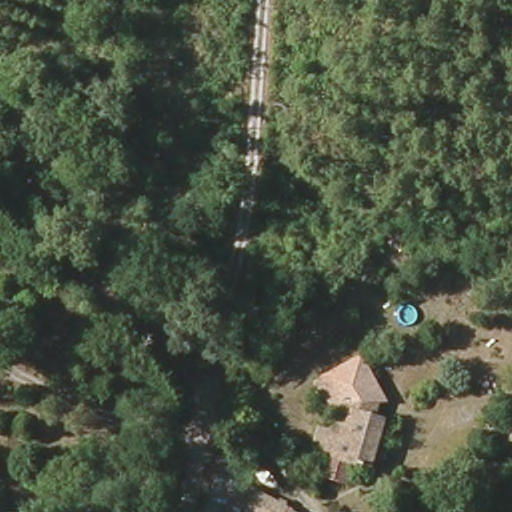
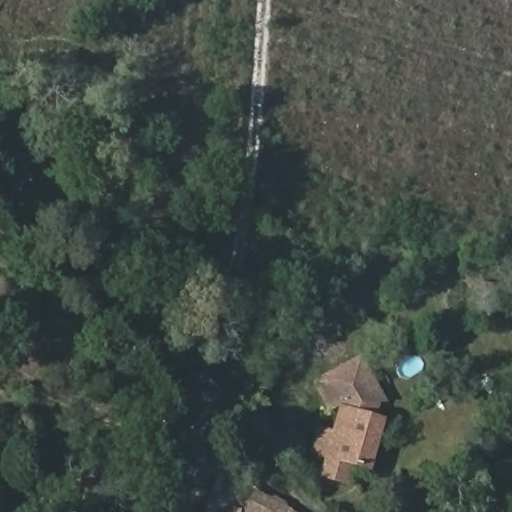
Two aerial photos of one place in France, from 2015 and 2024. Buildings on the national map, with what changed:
unchanged [(359,489),(315,476),(321,453),(306,450),(314,426),(329,431),(339,406),(328,413),(316,396),(332,387),(330,378),(358,366),(377,403),(379,419),(359,489)]
unchanged [(228,502),(232,489),(254,496),(249,512),(199,512),(201,493),(228,502)]

